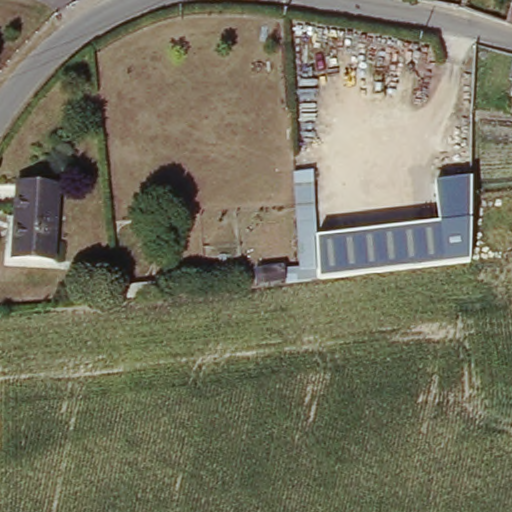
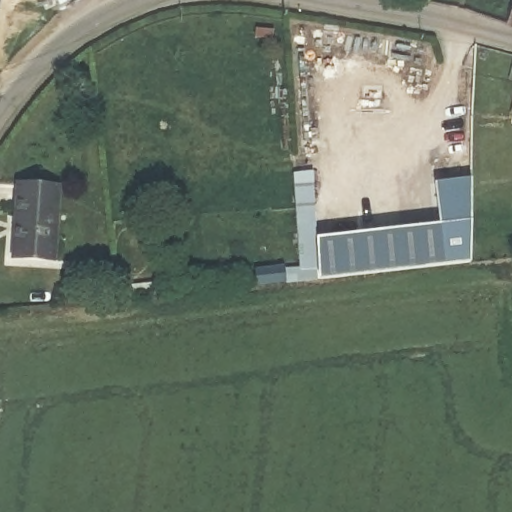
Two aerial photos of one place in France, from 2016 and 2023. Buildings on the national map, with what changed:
unchanged [(512,23),(511,23),(512,19),(512,23)]
unchanged [(463,169),(456,170),(456,129),(456,119),(474,119),(473,129),(472,164),(463,164),(463,169)]
unchanged [(472,258),(322,274),(320,264),(305,265),(296,170),(316,168),(322,234),(442,223),(438,178),(474,174),(472,258)]
unchanged [(58,184),(56,259),(17,256),(20,183),(58,184)]

